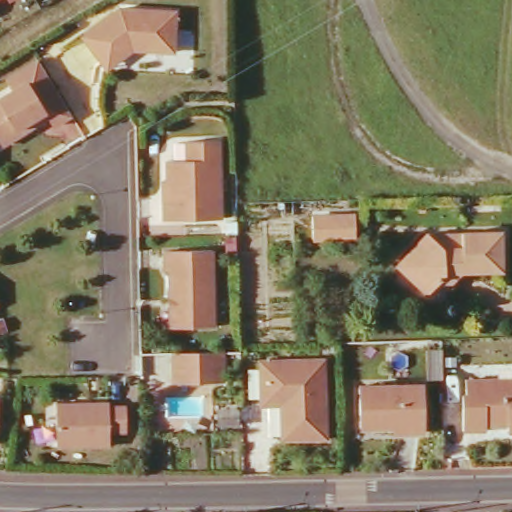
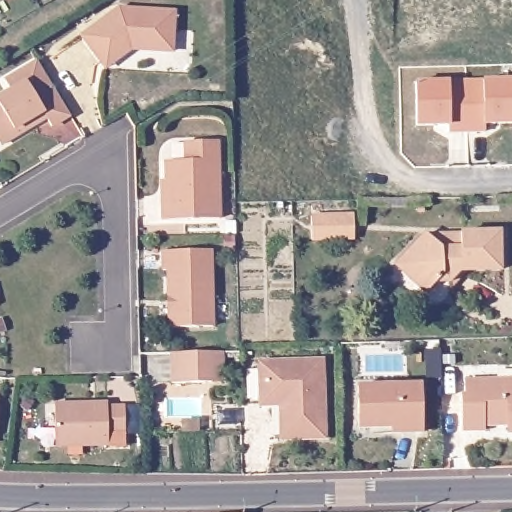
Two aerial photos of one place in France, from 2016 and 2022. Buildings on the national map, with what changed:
unchanged [(0,0),(7,0),(0,4),(0,0)]
unchanged [(7,0),(22,0),(11,6),(7,0)]
unchanged [(112,9),(111,7),(114,7),(171,11),(170,31),(161,30),(160,49),(135,46),(133,43),(112,9)]
unchanged [(78,34),(112,9),(133,43),(100,68),(78,34)]
unchanged [(3,76),(33,59),(65,115),(48,125),(40,110),(28,116),(31,124),(0,140),(0,93),(10,88),(3,76)]
new [(485,125),(485,134),(449,133),(450,126),(415,126),(415,81),(512,79),(512,125),(485,125)]
unchanged [(164,160),(180,160),(180,141),(215,140),(217,218),(160,220),(160,204),(165,204),(164,160)]
unchanged [(307,214),(348,213),(348,234),(307,235),(307,214)]
unchanged [(395,262),(424,235),(436,249),(455,250),(457,234),(495,233),(495,272),(460,272),(448,283),(441,278),(423,294),(395,262)]
unchanged [(171,272),(165,272),(166,250),(212,250),(214,326),(170,325),(171,272)]
unchanged [(212,351),(223,351),(223,382),(212,382),(175,382),(175,352),(212,351)]
unchanged [(267,359),(325,359),(325,436),(286,436),(285,400),(266,400),(267,359)]
unchanged [(456,396),(461,396),(462,382),(512,381),(512,432),(508,432),(508,427),(482,427),(482,432),(457,431),(456,396)]
unchanged [(396,434),(396,428),(360,428),(360,387),(425,386),(425,422),(425,433),(396,434)]
unchanged [(50,404),(101,404),(101,407),(119,408),(119,433),(103,433),(102,447),(50,447),(50,404)]

